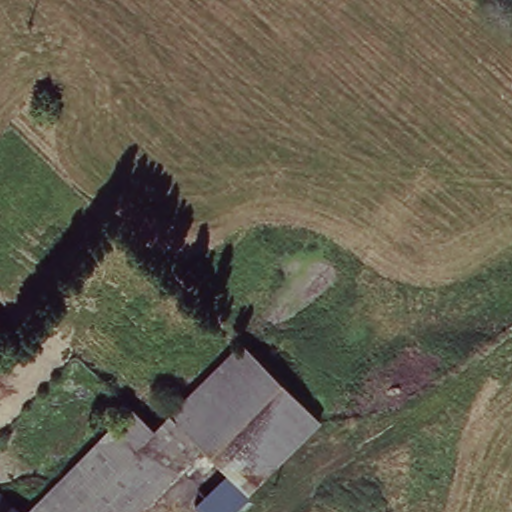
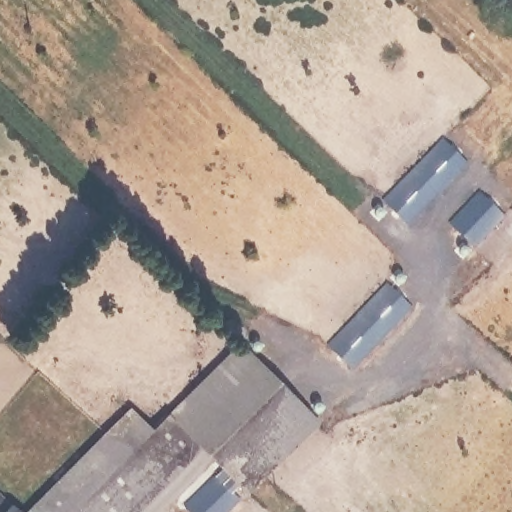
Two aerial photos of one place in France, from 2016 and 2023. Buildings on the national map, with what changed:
new [(388,204),(445,143),(467,164),(408,225),(388,204)]
new [(455,222),(485,190),(506,209),(475,240),(455,222)]
new [(333,343),(390,282),(412,303),(353,364),(333,343)]
unchanged [(172,413),(239,343),(321,423),(253,492),(229,468),(200,441),(172,413)]
unchanged [(127,410),(151,433),(79,512),(34,512),(127,410)]
unchanged [(151,433),(172,413),(200,441),(132,512),(79,512),(151,433)]
unchanged [(192,506),(229,468),(253,492),(233,512),(198,512),(192,506)]
unchanged [(0,497),(17,512),(0,512),(0,497)]

